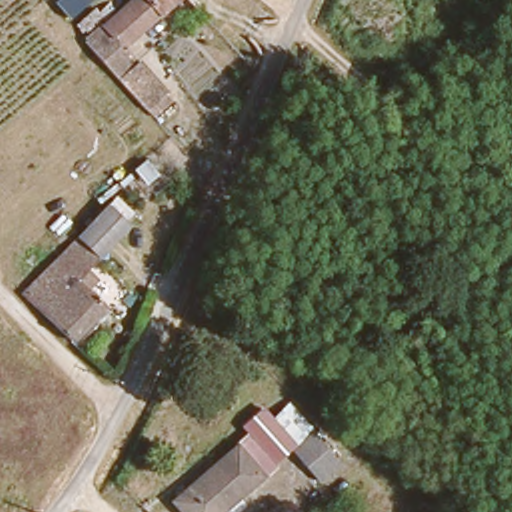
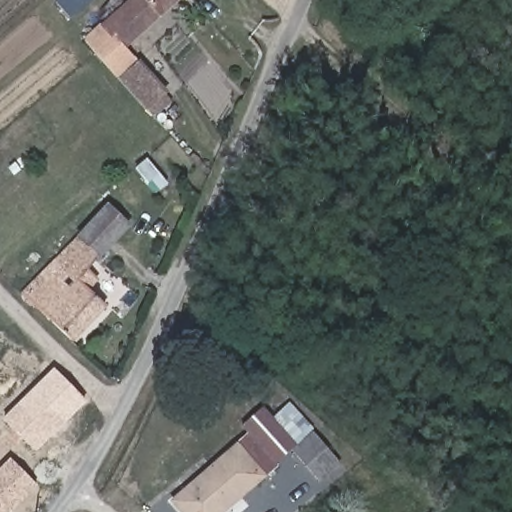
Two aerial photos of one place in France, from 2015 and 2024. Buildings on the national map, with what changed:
unchanged [(124,44),(164,89),(145,107),(95,52),(84,40),(128,0),(171,0),(138,31),(124,44)]
unchanged [(108,204),(128,223),(101,252),(81,234),(108,204)]
unchanged [(95,279),(88,287),(107,306),(74,341),(24,294),(81,234),(101,252),(85,269),(95,279)]
new [(2,419),(53,369),(85,402),(35,451),(2,419)]
unchanged [(244,433),(238,427),(261,404),(270,416),(289,399),(315,428),(312,431),(338,462),(316,481),(288,448),(274,462),(277,465),(264,475),(235,441),(244,433)]
unchanged [(219,512),(181,512),(170,499),(237,446),(262,478),(219,512)]
new [(37,486),(9,512),(0,512),(0,467),(10,458),(37,486)]

